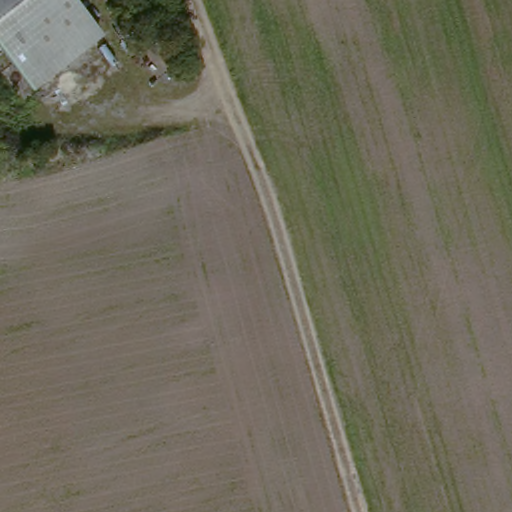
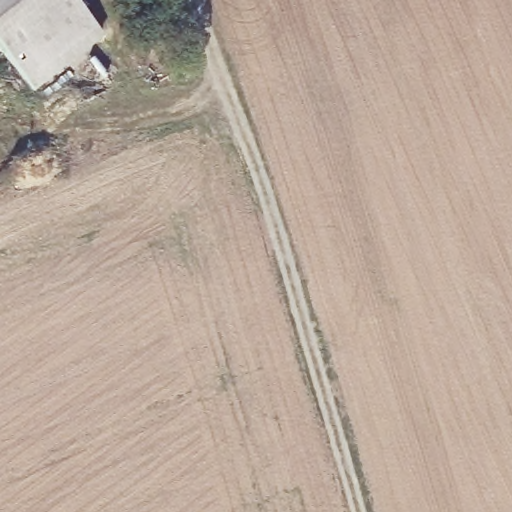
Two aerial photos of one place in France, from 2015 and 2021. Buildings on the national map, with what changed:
unchanged [(81,0),(110,37),(41,93),(0,40),(0,0),(81,0)]

